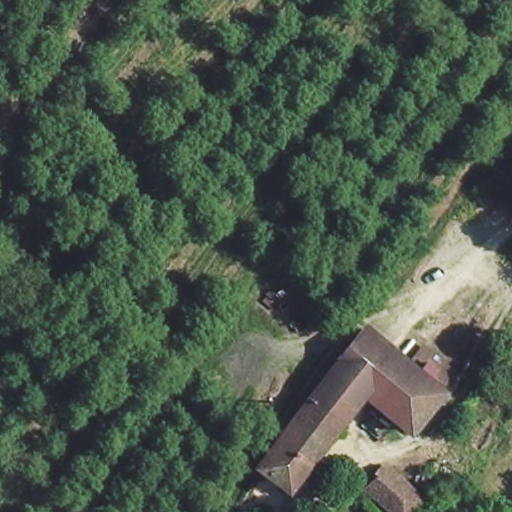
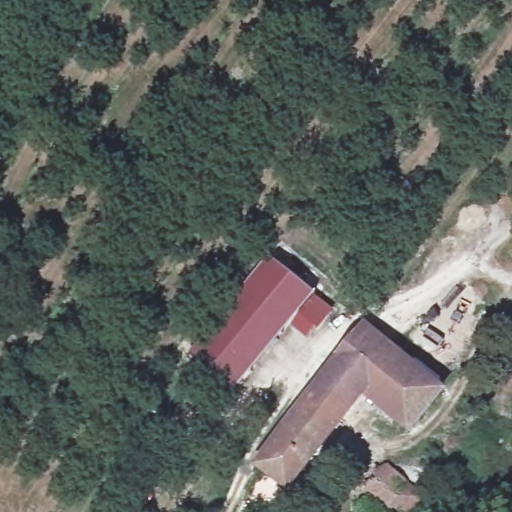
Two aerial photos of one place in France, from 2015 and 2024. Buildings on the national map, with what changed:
new [(268,257),(314,295),(234,391),(188,353),(268,257)]
unchanged [(368,336),(380,346),(390,353),(394,357),(410,369),(423,352),(447,371),(434,389),(443,396),(414,439),(365,399),(336,376),(368,336)]
unchanged [(288,497),(260,471),(333,379),(336,376),(365,399),(288,497)]
unchanged [(422,506),(415,512),(394,512),(377,487),(396,471),(398,473),(422,506)]

